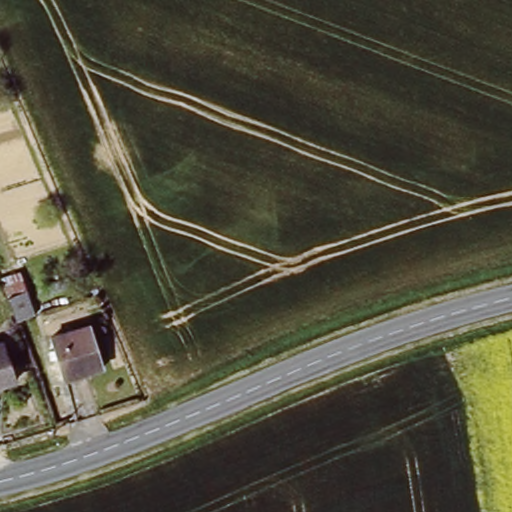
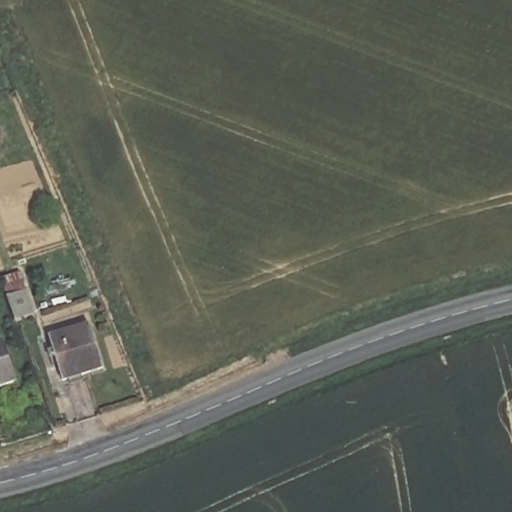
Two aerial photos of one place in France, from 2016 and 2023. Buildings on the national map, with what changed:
unchanged [(24,310),(30,328),(14,332),(11,325),(1,292),(17,287),(24,310)]
unchanged [(91,323),(106,365),(68,377),(53,337),(91,323)]
unchanged [(14,378),(0,382),(0,342),(3,342),(14,378)]

